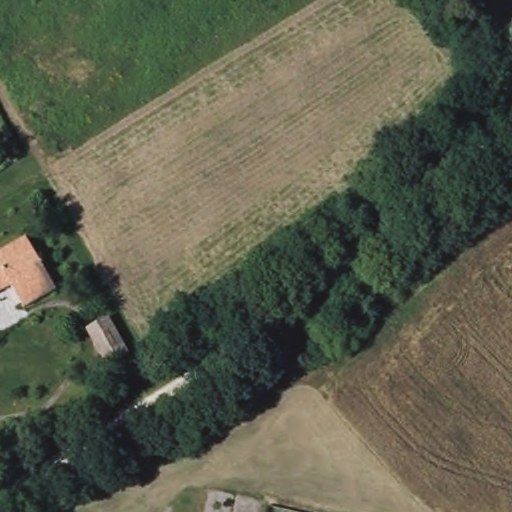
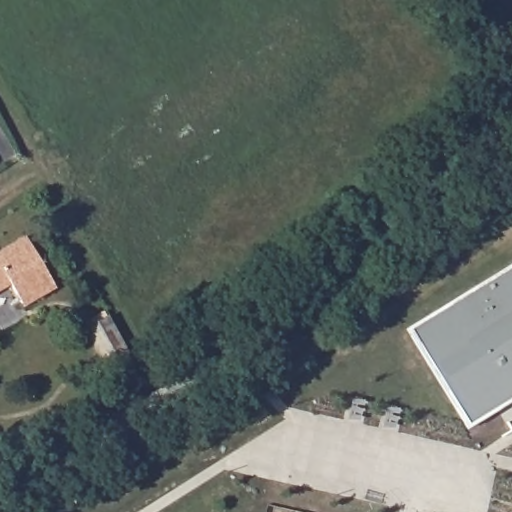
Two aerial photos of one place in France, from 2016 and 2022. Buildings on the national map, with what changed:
unchanged [(26,235),(55,288),(22,306),(9,283),(0,287),(0,252),(26,235)]
new [(407,329),(512,265),(512,402),(497,412),(468,429),(407,329)]
new [(109,318),(129,354),(112,363),(109,365),(89,329),(92,327),(109,318)]

